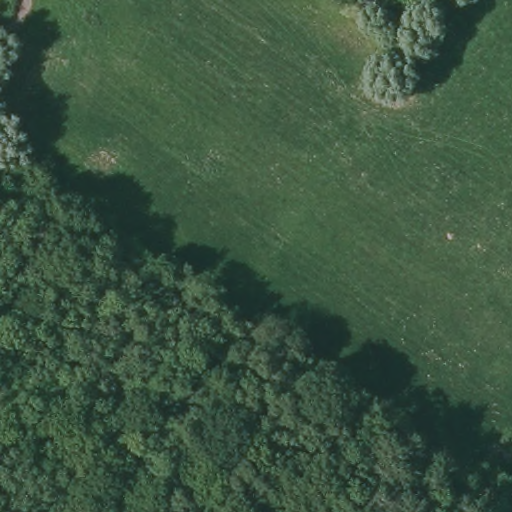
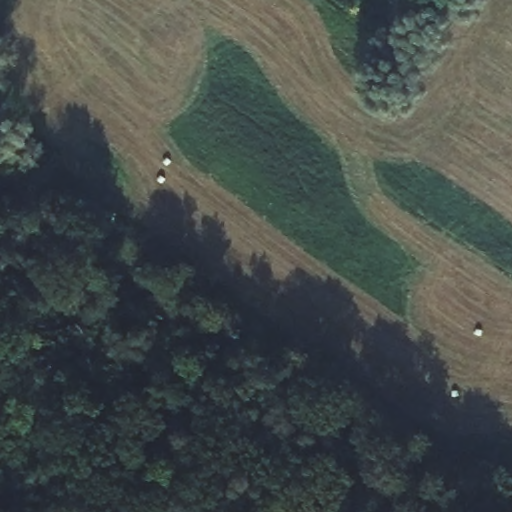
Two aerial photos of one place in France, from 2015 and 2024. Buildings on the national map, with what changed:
[]

